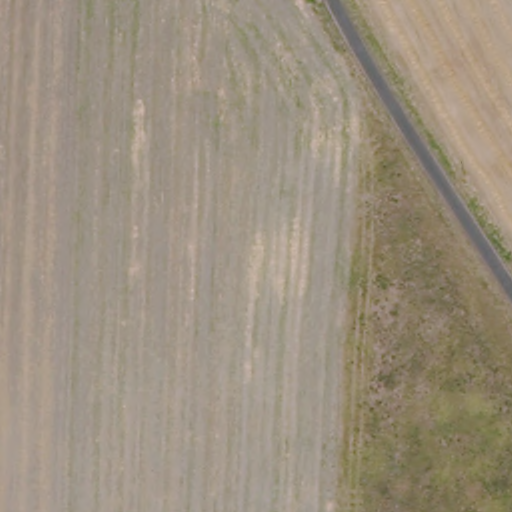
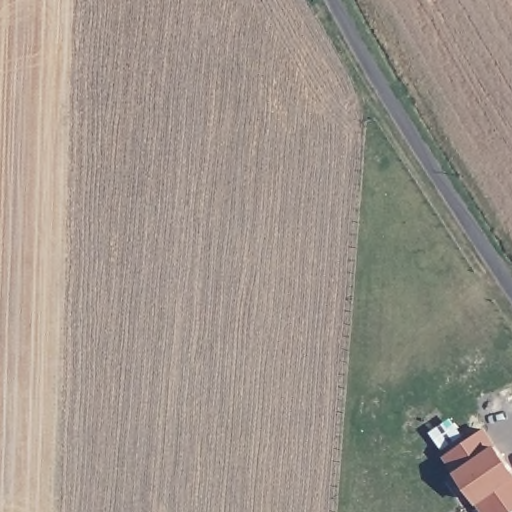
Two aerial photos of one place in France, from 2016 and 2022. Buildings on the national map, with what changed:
new [(457,473),(445,455),(486,427),(497,442),(497,444),(512,467),(512,511),(511,512),(484,512),(477,501),(457,473)]

